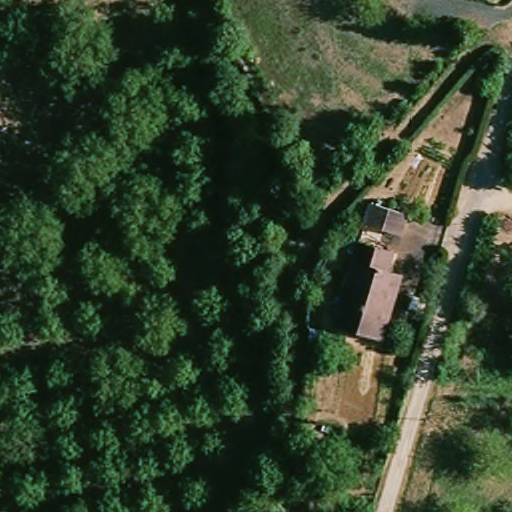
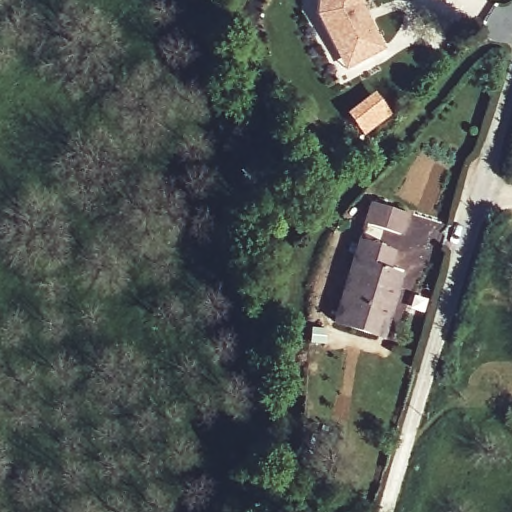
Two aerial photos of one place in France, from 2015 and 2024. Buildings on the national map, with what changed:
new [(384,50),(343,71),(314,15),(315,0),(361,0),(361,6),(384,50)]
unchanged [(409,216),(401,240),(367,229),(374,205),(409,216)]
unchanged [(388,268),(401,273),(379,337),(334,321),(361,242),(394,253),(388,268)]

